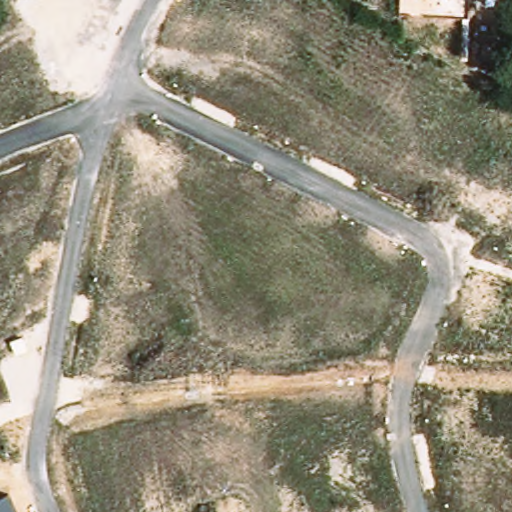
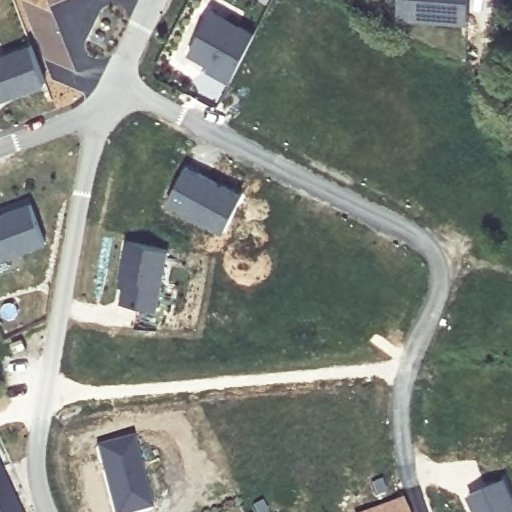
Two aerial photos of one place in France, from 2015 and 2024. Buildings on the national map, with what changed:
new [(472,0),(471,20),(400,17),(401,0),(472,0)]
new [(186,52),(208,11),(254,34),(229,81),(214,74),(205,69),(208,64),(186,52)]
new [(46,83),(0,101),(0,55),(30,43),(46,83)]
new [(190,159),(244,191),(224,231),(166,201),(190,159)]
new [(45,243),(0,260),(0,216),(30,205),(45,243)]
new [(127,237),(172,247),(161,307),(119,300),(127,237)]
new [(135,435),(151,510),(143,512),(113,512),(96,445),(135,435)]
unchanged [(0,470),(11,492),(0,498),(0,470)]
new [(509,474),(512,481),(512,512),(477,512),(468,493),(509,474)]
unchanged [(0,498),(11,492),(20,512),(0,512),(0,498)]
new [(403,500),(407,512),(365,512),(403,500)]

